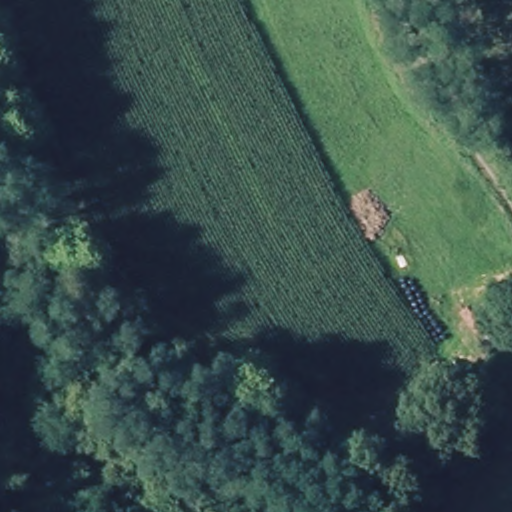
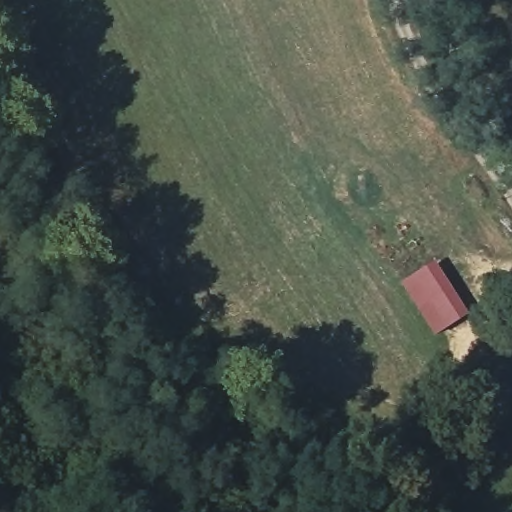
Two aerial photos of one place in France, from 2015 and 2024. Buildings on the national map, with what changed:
new [(400,285),(427,269),(459,321),(434,337),(400,285)]

